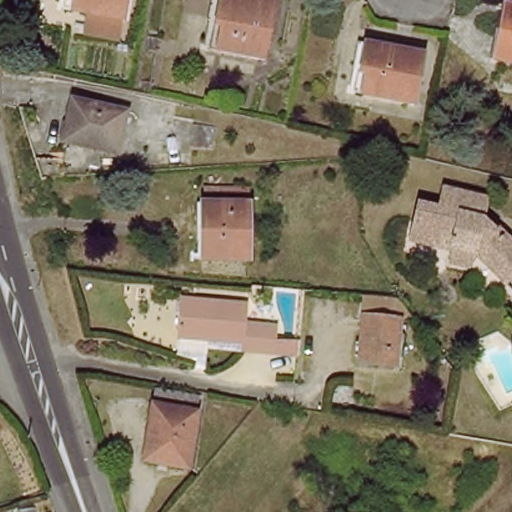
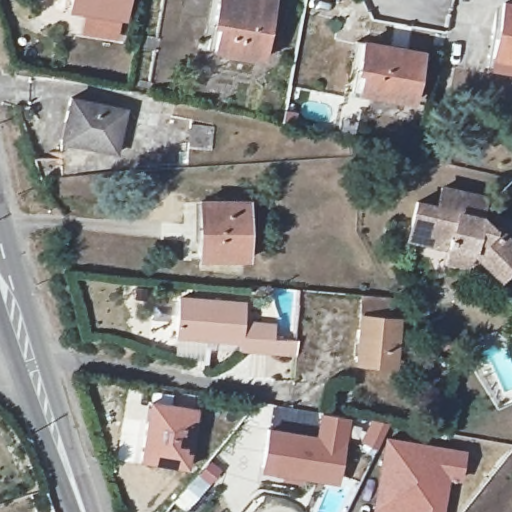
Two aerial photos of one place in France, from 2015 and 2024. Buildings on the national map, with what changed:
unchanged [(131,0),(128,18),(64,6),(65,0),(131,0)]
unchanged [(274,0),(262,60),(207,48),(215,0),(274,0)]
unchanged [(512,6),(512,61),(498,59),(508,6),(512,6)]
unchanged [(117,43),(77,38),(80,17),(119,23),(117,43)]
unchanged [(361,44),(426,58),(416,106),(351,91),(361,44)]
unchanged [(74,99),(131,112),(122,153),(65,139),(74,99)]
unchanged [(192,125),(216,129),(213,150),(187,147),(192,125)]
unchanged [(438,208),(441,189),(486,201),(482,219),(495,234),(498,231),(512,249),(510,251),(512,253),(512,273),(498,284),(471,255),(408,239),(417,203),(438,208)]
unchanged [(202,201),(253,203),(249,263),(197,261),(202,201)]
unchanged [(301,348),(300,359),(274,357),(245,352),(246,346),(175,338),(181,296),(248,303),(247,323),(278,326),(276,340),(302,342),(301,348)]
unchanged [(364,316),(403,320),(397,369),(358,365),(364,316)]
unchanged [(151,403),(196,410),(187,466),(143,459),(151,403)]
new [(260,472),(269,428),(316,436),(321,413),(351,419),(339,485),(260,472)]
new [(467,449),(462,482),(450,481),(447,512),(373,512),(384,436),(467,449)]

